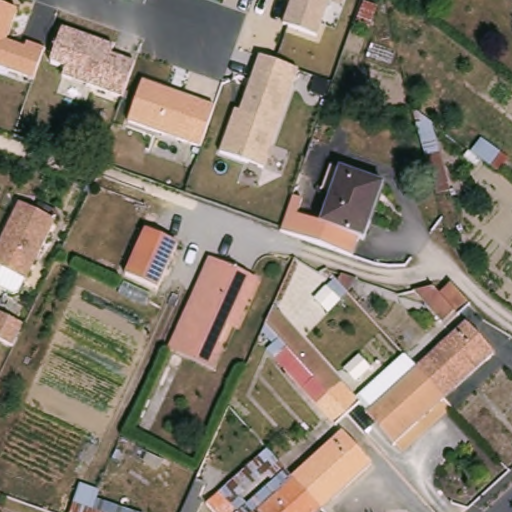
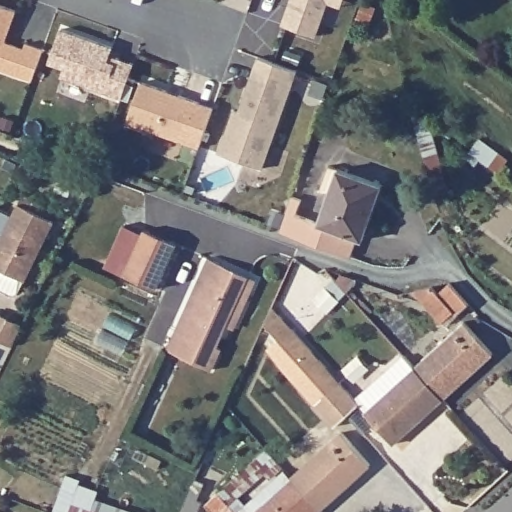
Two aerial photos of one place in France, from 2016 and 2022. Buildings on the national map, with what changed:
unchanged [(329,3),(318,40),(283,29),(292,0),(346,0),(344,7),(329,3)]
unchanged [(23,47),(25,43),(44,48),(33,81),(0,69),(0,6),(16,11),(6,42),(23,47)]
unchanged [(113,47),(111,55),(133,65),(123,99),(62,79),(65,70),(50,66),(61,30),(113,47)]
unchanged [(298,71),(264,169),(223,157),(236,113),(240,113),(257,57),(298,71)]
unchanged [(214,109),(202,147),(129,123),(140,85),(214,109)]
unchanged [(456,191),(438,193),(416,110),(437,120),(456,191)]
unchanged [(512,157),(512,158),(502,173),(476,151),(490,140),(512,157)]
unchanged [(298,197),(310,202),(305,214),(326,224),(336,196),(327,192),(338,167),(391,188),(367,248),(361,245),(356,259),(285,231),(298,197)]
unchanged [(53,221),(26,283),(0,270),(0,246),(19,204),(53,221)]
unchanged [(148,229),(180,242),(161,287),(129,274),(148,229)]
unchanged [(191,304),(210,259),(251,276),(260,279),(240,328),(231,323),(221,345),(227,349),(217,370),(183,356),(171,352),(181,329),(191,304)]
unchanged [(415,288),(450,283),(472,306),(460,317),(459,316),(451,324),(429,302),(415,288)]
unchanged [(23,325),(14,349),(0,344),(0,316),(23,325)]
unchanged [(467,323),(497,357),(474,378),(469,373),(456,385),(461,391),(449,402),(434,386),(418,370),(467,323)]
unchanged [(364,404),(350,418),(340,427),(320,405),(281,363),(289,356),(315,384),(329,374),(340,386),(344,382),(364,404)]
unchanged [(441,410),(435,404),(420,417),(425,424),(402,444),(372,412),(378,407),(370,399),(389,382),(396,389),(418,370),(434,386),(449,402),(441,410)]
unchanged [(289,473),(297,482),(349,434),(379,466),(356,487),(350,483),(337,493),(342,499),(329,512),(247,512),(289,473)]
unchanged [(213,505),(218,500),(224,494),(266,455),(269,452),(279,463),(234,506),(240,512),(219,512),(213,505)]
unchanged [(194,497),(210,502),(206,510),(206,511),(205,512),(188,512),(193,500),(194,497)]
unchanged [(77,502),(105,512),(74,512),(77,502)]

